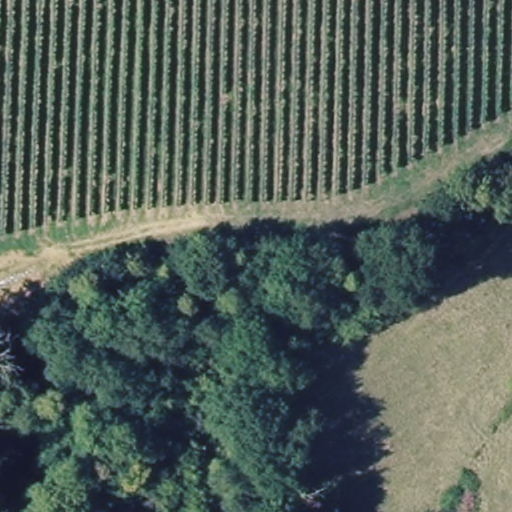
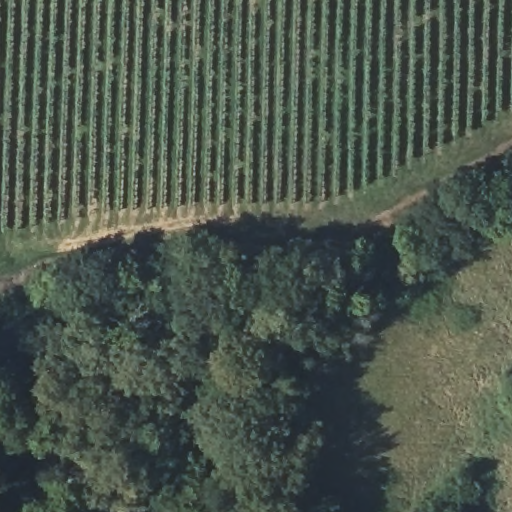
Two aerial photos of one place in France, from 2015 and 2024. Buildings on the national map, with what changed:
[]

